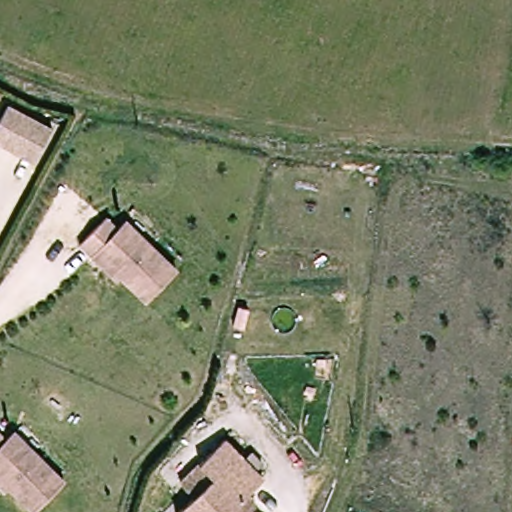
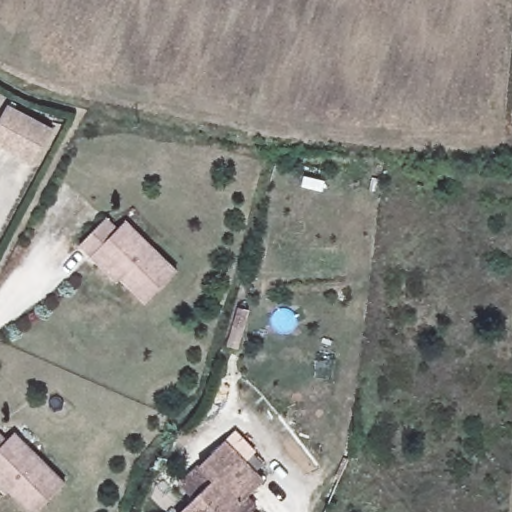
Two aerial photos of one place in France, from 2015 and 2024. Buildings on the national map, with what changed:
unchanged [(34,163),(0,145),(0,114),(5,105),(11,107),(51,131),(34,163)]
unchanged [(90,259),(78,247),(103,220),(114,231),(123,222),(176,271),(146,303),(120,279),(116,283),(90,259)]
unchanged [(0,436),(3,438),(6,441),(9,438),(14,433),(18,437),(64,484),(36,512),(31,512),(9,490),(5,493),(0,488),(0,436)]
unchanged [(256,506),(251,512),(180,512),(194,498),(181,483),(199,466),(226,441),(264,481),(247,497),(256,506)]

